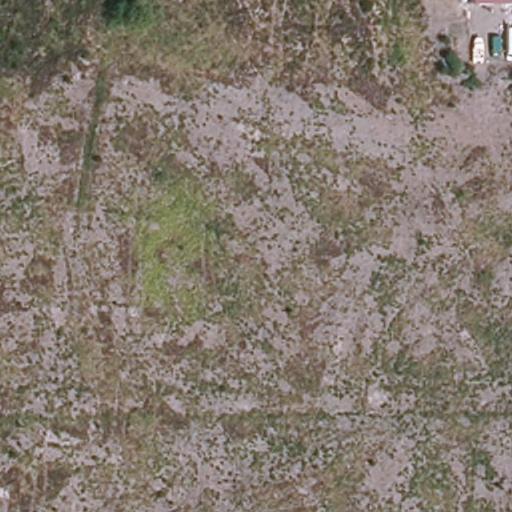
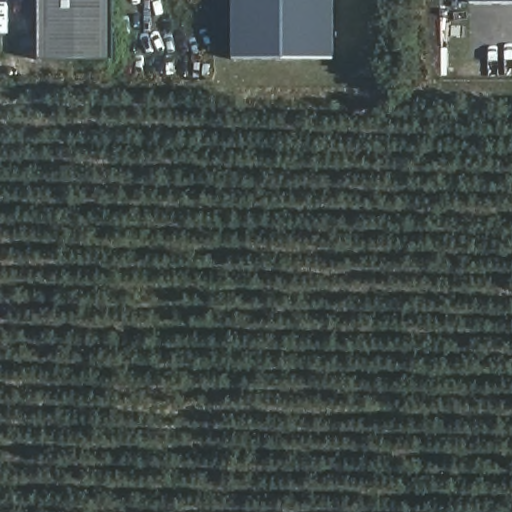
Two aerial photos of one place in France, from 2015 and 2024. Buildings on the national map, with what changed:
new [(40,0),(114,0),(114,59),(40,59),(40,0)]
new [(233,59),(233,0),(333,0),(334,59),(233,59)]
unchanged [(470,0),(512,0),(512,2),(470,3),(470,0)]

